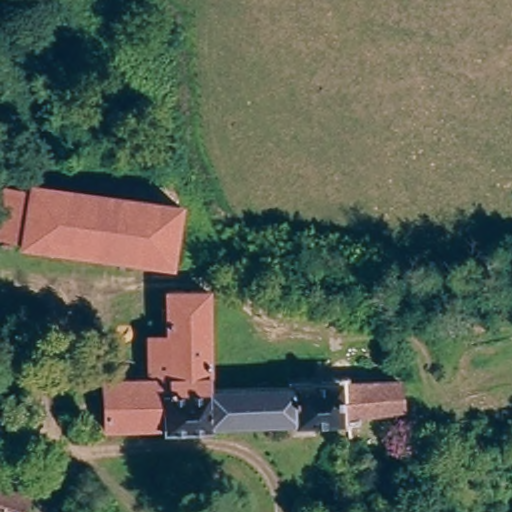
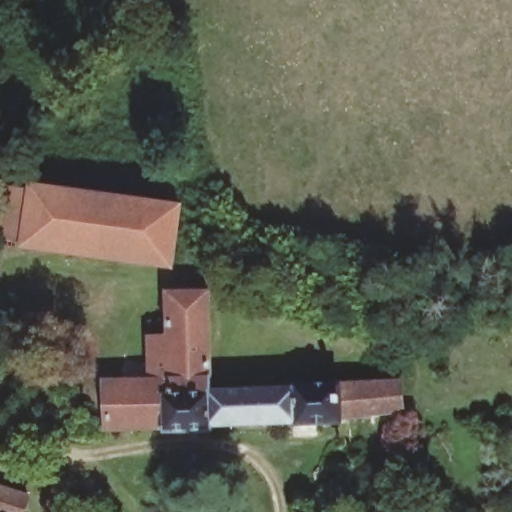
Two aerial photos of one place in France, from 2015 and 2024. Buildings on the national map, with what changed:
unchanged [(31,184),(180,205),(169,261),(23,243),(24,239),(30,190),(31,184)]
unchanged [(0,186),(30,190),(24,239),(0,235),(0,186)]
unchanged [(342,428),(292,431),(292,425),(212,430),(212,434),(165,437),(165,428),(105,433),(105,383),(147,381),(146,342),(165,341),(166,300),(209,299),(211,390),(292,386),(292,393),(395,386),(396,390),(415,387),(415,403),(396,406),(397,415),(341,422),(342,428)]
unchanged [(28,512),(0,512),(0,486),(32,496),(28,512)]

